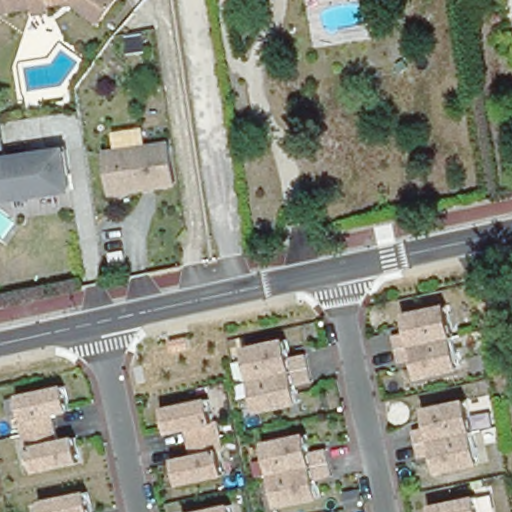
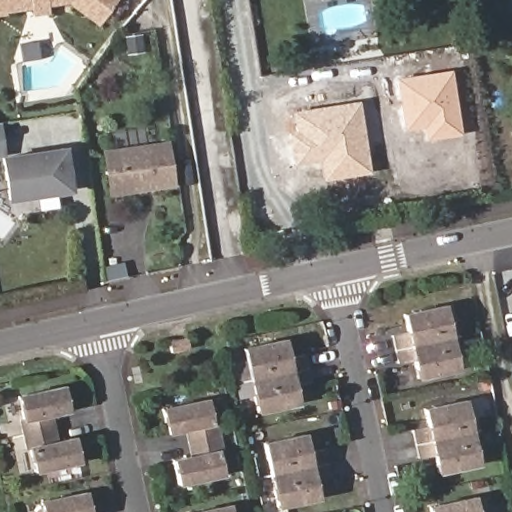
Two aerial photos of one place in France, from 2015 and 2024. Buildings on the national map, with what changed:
unchanged [(56,6),(41,9),(40,0),(12,5),(0,8),(0,0),(56,0),(56,6)]
unchanged [(103,11),(99,16),(78,0),(113,0),(103,11)]
new [(451,69),(461,133),(425,140),(422,126),(402,129),(395,79),(451,69)]
new [(294,130),(291,112),(358,101),(369,173),(321,180),(318,162),(292,166),(286,133),(294,130)]
new [(3,154),(0,155),(0,130),(3,154)]
unchanged [(107,196),(100,149),(162,137),(170,184),(107,196)]
unchanged [(5,201),(0,170),(0,155),(3,154),(64,146),(70,190),(5,201)]
unchanged [(415,379),(410,360),(390,365),(385,328),(403,325),(401,311),(447,302),(461,370),(415,379)]
unchanged [(256,411),(242,345),(286,338),(291,354),(304,350),(308,379),(295,382),(299,402),(256,411)]
unchanged [(37,473),(21,394),(67,384),(73,410),(57,414),(63,437),(75,435),(83,465),(37,473)]
unchanged [(180,485),(171,458),(186,455),(180,427),(162,430),(159,406),(207,395),(223,474),(180,485)]
unchanged [(480,462),(437,471),(432,455),(413,459),(407,426),(427,423),(425,403),(465,396),(480,462)]
unchanged [(272,507),(262,441),(304,431),(309,451),(321,448),(327,478),(315,481),(320,501),(272,507)]
unchanged [(79,486),(83,512),(37,512),(34,495),(79,486)]
unchanged [(476,512),(428,512),(426,503),(472,494),(476,512)]
unchanged [(185,512),(184,511),(230,501),(232,512),(185,512)]

